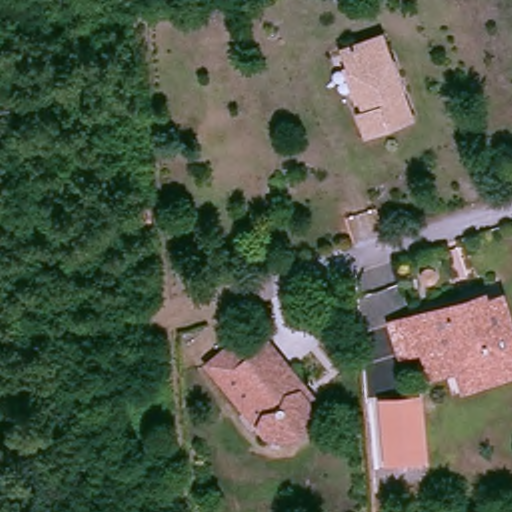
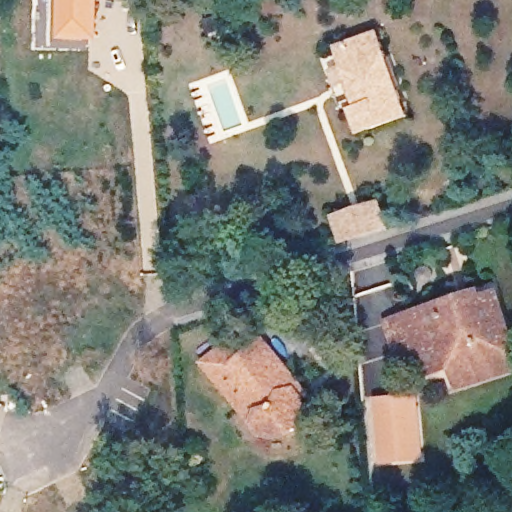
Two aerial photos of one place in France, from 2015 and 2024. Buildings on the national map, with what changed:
new [(97,40),(53,37),(55,0),(99,0),(97,40)]
unchanged [(352,135),(346,114),(353,111),(335,50),(378,38),(401,121),(352,135)]
demolished [(28,139),(53,140),(53,155),(28,154),(28,139)]
new [(331,216),(374,202),(383,231),(340,245),(331,216)]
unchanged [(444,371),(419,380),(410,352),(389,359),(379,326),(400,320),(434,308),(470,297),(473,304),(485,300),(502,353),(444,371)]
unchanged [(210,373),(244,345),(256,361),(270,350),(307,396),(303,400),(309,409),(310,420),(307,431),(300,440),(290,445),(278,445),(268,442),(261,434),(223,388),(210,373)]
unchanged [(508,374),(451,392),(444,371),(502,353),(508,374)]
unchanged [(425,462),(384,465),(378,397),(420,395),(425,462)]

